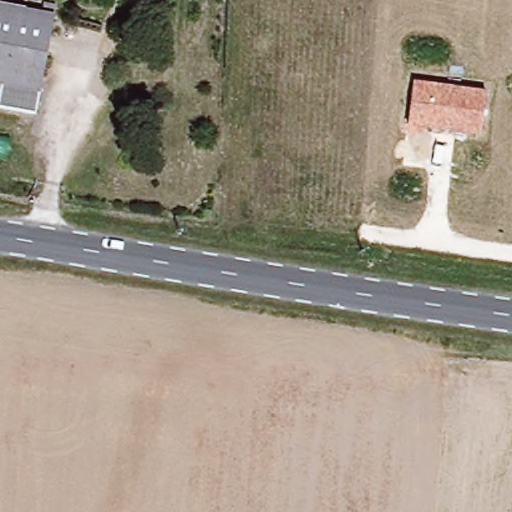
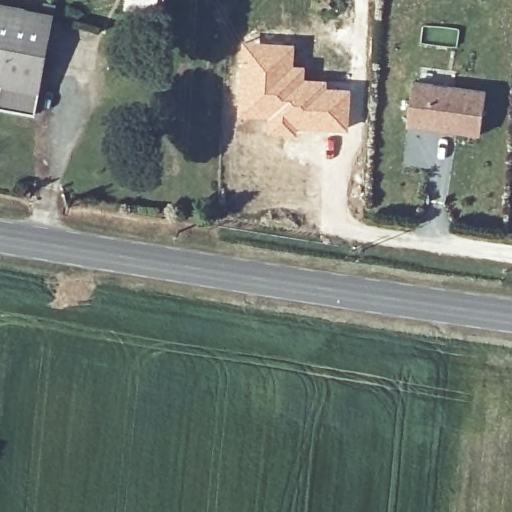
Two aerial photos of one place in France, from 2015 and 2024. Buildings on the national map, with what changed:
new [(159,0),(155,15),(124,9),(125,0),(159,0)]
unchanged [(34,116),(0,110),(0,89),(1,85),(0,85),(0,5),(51,15),(34,116)]
new [(239,39),(296,42),(295,62),(307,64),(306,76),(329,77),(329,85),(352,86),(349,130),(296,130),(296,132),(235,133),(239,39)]
unchanged [(485,90),(479,135),(408,125),(413,81),(485,90)]

